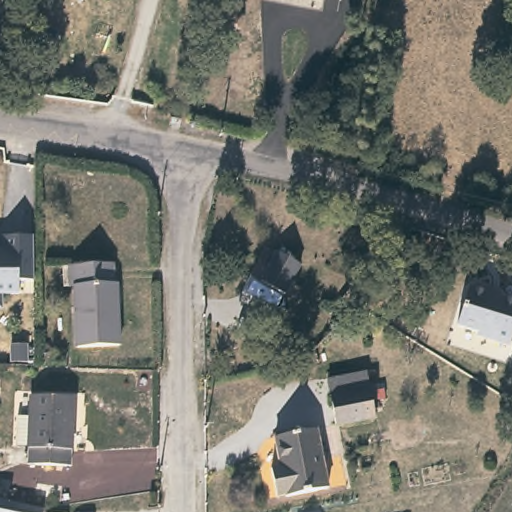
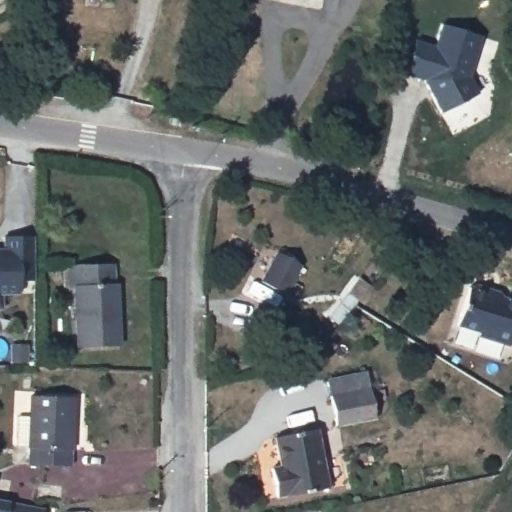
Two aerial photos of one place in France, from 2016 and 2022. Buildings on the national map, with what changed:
unchanged [(325,2),(314,0),(325,0),(325,2)]
new [(435,45),(442,23),(483,37),(471,76),(480,94),(441,111),(425,80),(405,74),(416,40),(435,45)]
unchanged [(33,278),(20,279),(19,290),(0,291),(0,246),(3,246),(4,233),(33,232),(33,278)]
unchanged [(301,265),(284,293),(261,279),(278,251),(301,265)]
unchanged [(111,265),(112,284),(115,285),(118,347),(76,349),(75,328),(74,288),(69,288),(68,266),(88,266),(111,265)]
unchanged [(368,285),(356,299),(342,314),(332,306),(345,290),(357,275),(368,285)]
unchanged [(480,335),(481,331),(459,325),(470,287),(472,287),(477,284),(487,287),(490,292),(512,299),(512,340),(511,345),(480,335)]
unchanged [(341,426),(336,396),(333,380),(372,375),(375,390),(380,420),(341,426)]
unchanged [(31,399),(73,398),(75,464),(32,465),(32,449),(20,449),(19,419),(32,419),(31,399)]
unchanged [(326,494),(285,502),(284,497),(275,499),(270,471),(279,469),(274,441),(315,434),(326,494)]
unchanged [(2,477),(0,482),(0,476),(2,477)]
unchanged [(0,512),(0,498),(45,510),(44,512),(0,512)]

